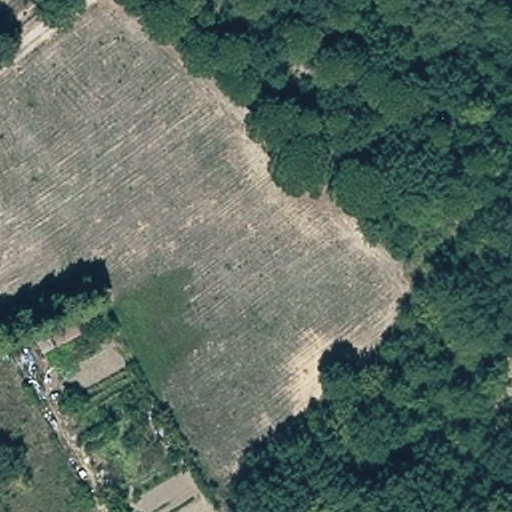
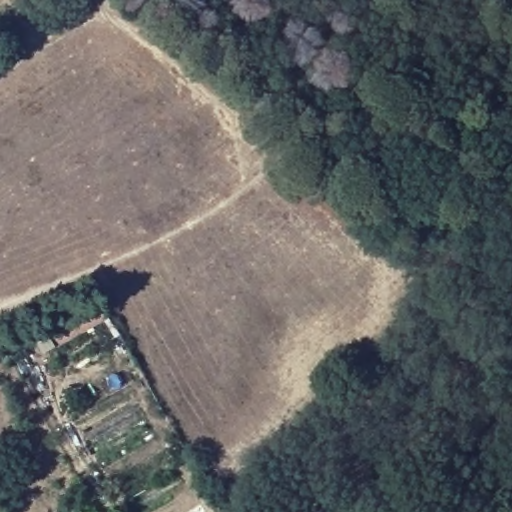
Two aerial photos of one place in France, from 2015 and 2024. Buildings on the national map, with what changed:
unchanged [(100,301),(109,319),(46,351),(36,333),(100,301)]

